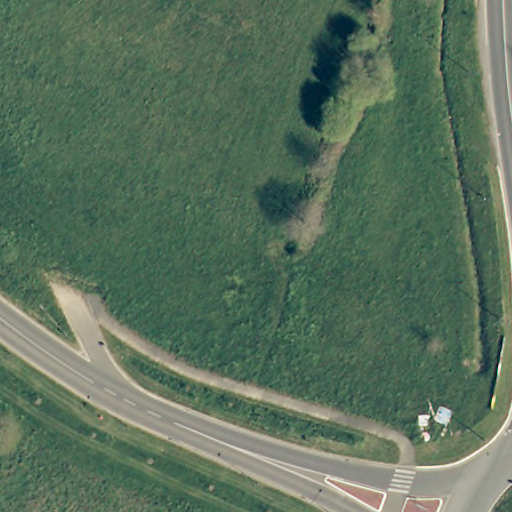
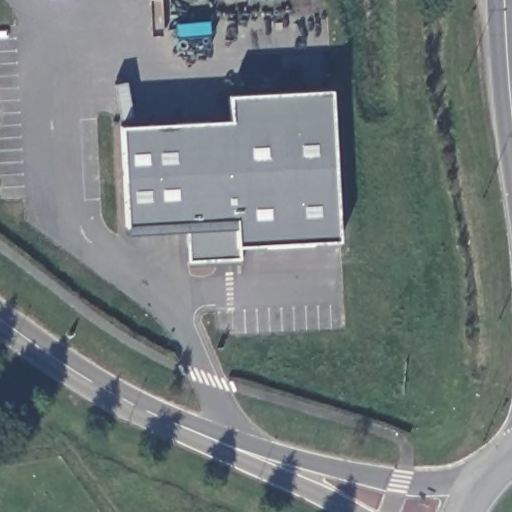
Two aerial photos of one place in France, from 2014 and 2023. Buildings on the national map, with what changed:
new [(231,121),(231,95),(331,91),(340,240),(239,245),(240,258),(189,260),(189,221),(127,225),(122,127),(231,121)]

